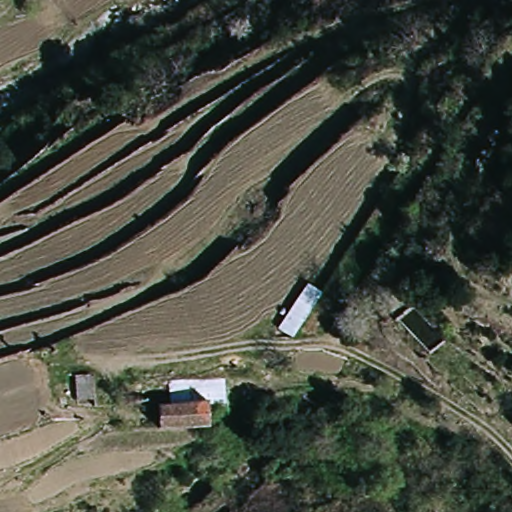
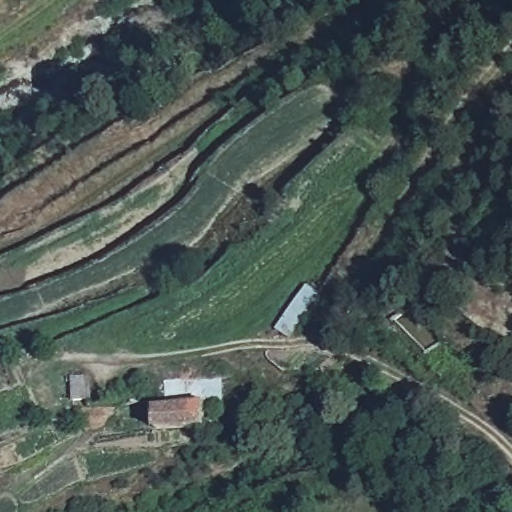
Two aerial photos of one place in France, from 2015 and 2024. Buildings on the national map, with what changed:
unchanged [(278,330),(308,283),(321,293),(293,338),(278,330)]
unchanged [(75,375),(94,376),(97,401),(78,402),(75,375)]
unchanged [(213,427),(163,431),(158,406),(211,404),(213,427)]

